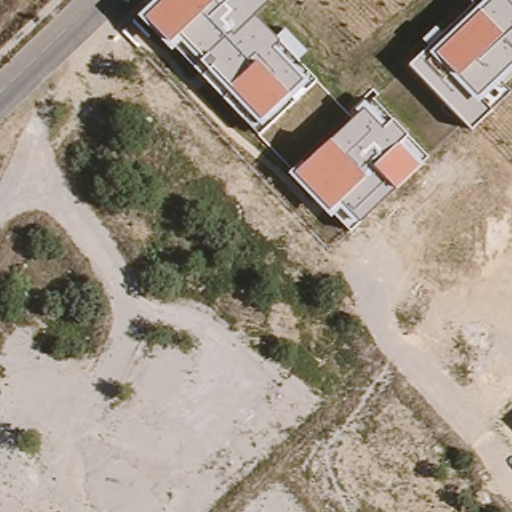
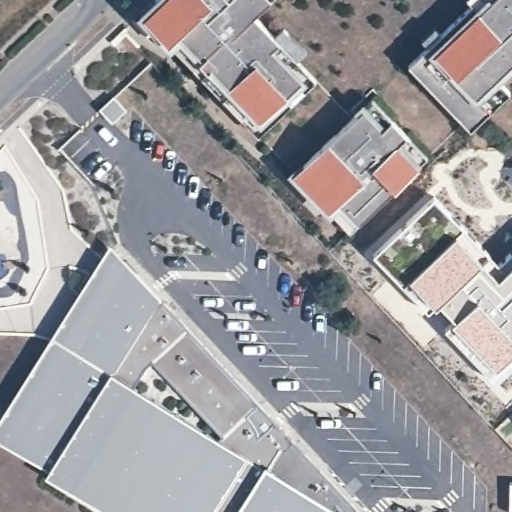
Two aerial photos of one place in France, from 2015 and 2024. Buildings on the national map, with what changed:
unchanged [(174,47),(171,51),(138,16),(155,0),(268,0),(253,15),(276,38),(285,30),(305,51),(298,59),(316,79),(258,136),(174,47)]
unchanged [(409,65),(428,46),(422,39),(436,26),(442,33),(471,4),(467,0),(512,0),(512,69),(500,81),(509,91),(470,130),(409,65)]
unchanged [(356,113),(354,110),(364,101),(367,104),(373,100),(392,119),(406,134),(428,157),(419,165),(358,223),(350,232),(333,214),(330,217),(289,174),(356,113)]
new [(103,113),(116,101),(128,113),(115,125),(103,113)]
new [(462,225),(499,262),(512,250),(512,360),(503,368),(504,371),(494,380),(443,328),(453,318),(439,304),(428,313),(401,283),(462,225)]
new [(49,470),(0,442),(0,420),(110,245),(161,299),(358,511),(356,512),(341,512),(335,506),(331,512),(108,512),(46,475),(49,470)]

